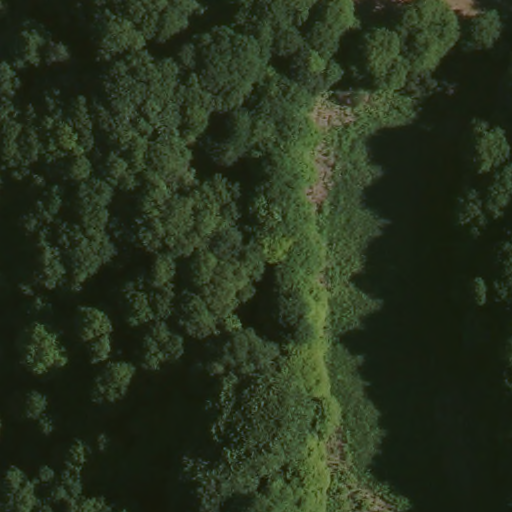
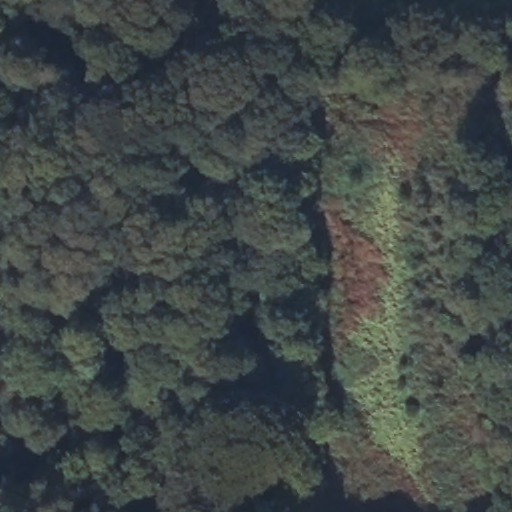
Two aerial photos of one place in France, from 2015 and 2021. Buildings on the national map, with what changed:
[]

